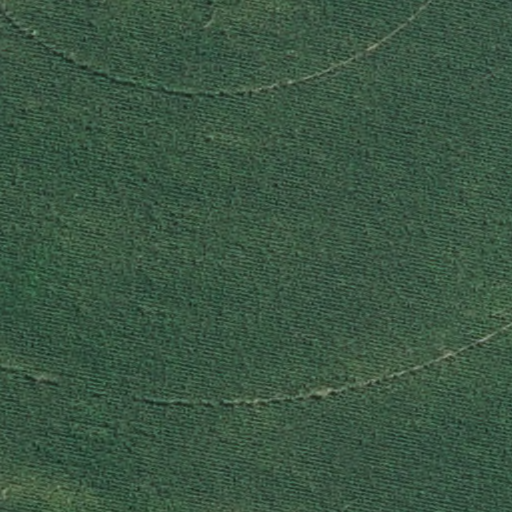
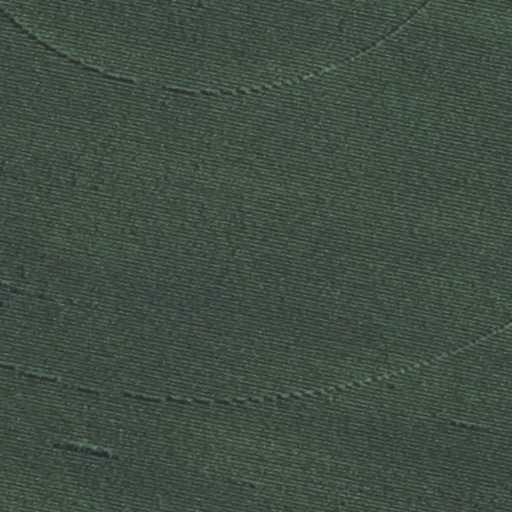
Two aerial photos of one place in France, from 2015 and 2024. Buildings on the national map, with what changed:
[]

